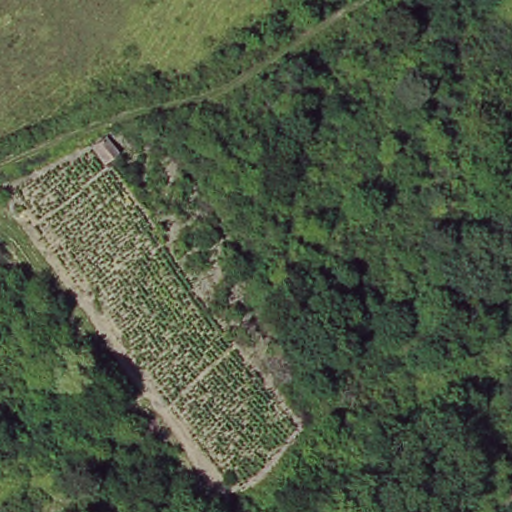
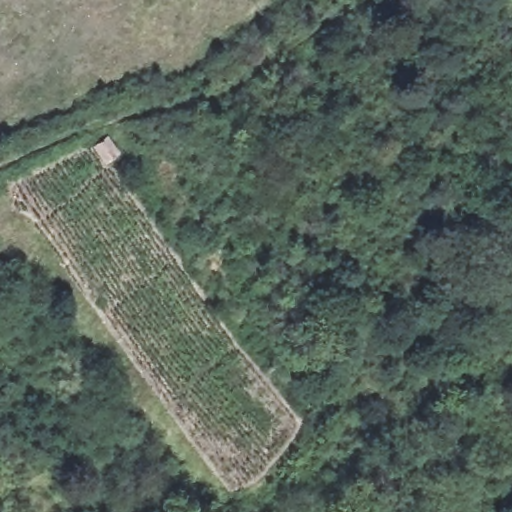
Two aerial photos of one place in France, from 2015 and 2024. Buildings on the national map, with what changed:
unchanged [(91,146),(109,136),(119,155),(114,159),(105,165),(91,146)]

